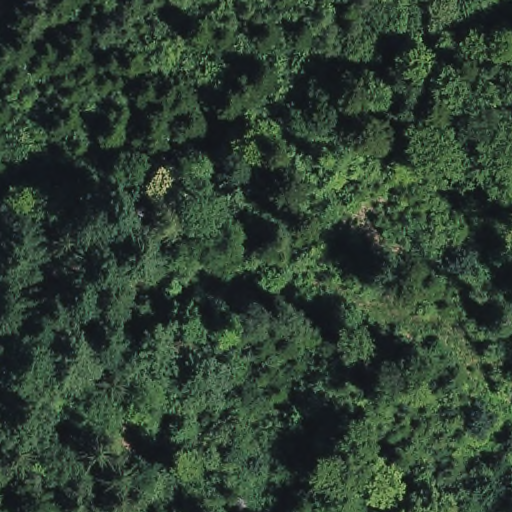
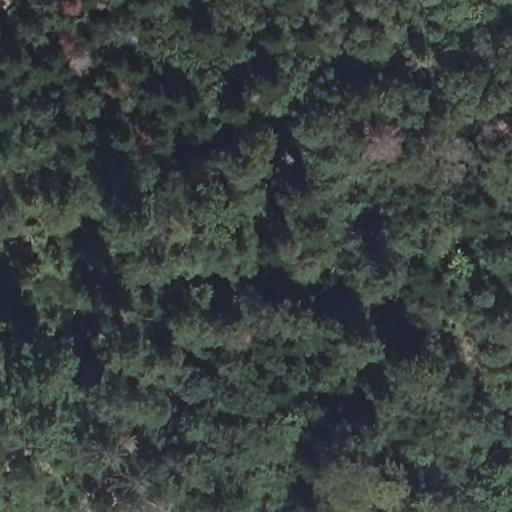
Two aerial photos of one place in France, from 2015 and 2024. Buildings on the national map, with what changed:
[]

